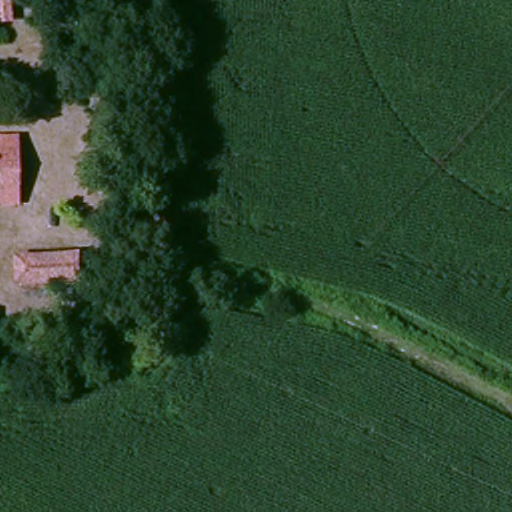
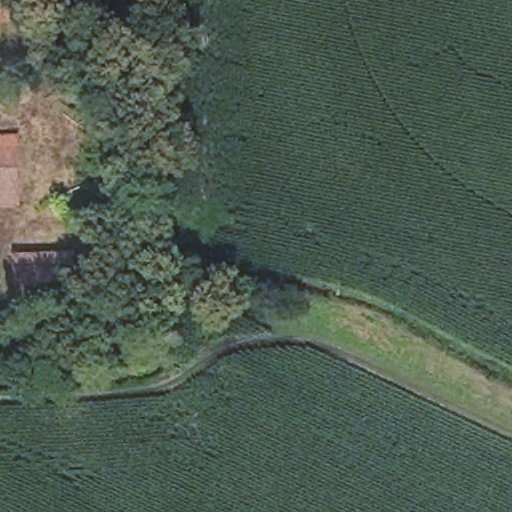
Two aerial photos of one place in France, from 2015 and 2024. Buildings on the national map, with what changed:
unchanged [(0,33),(0,0),(13,0),(18,31),(0,33)]
unchanged [(21,204),(0,204),(0,139),(21,139),(21,204)]
unchanged [(71,289),(26,283),(27,254),(75,259),(71,289)]
unchanged [(0,328),(0,311),(1,312),(0,328)]

